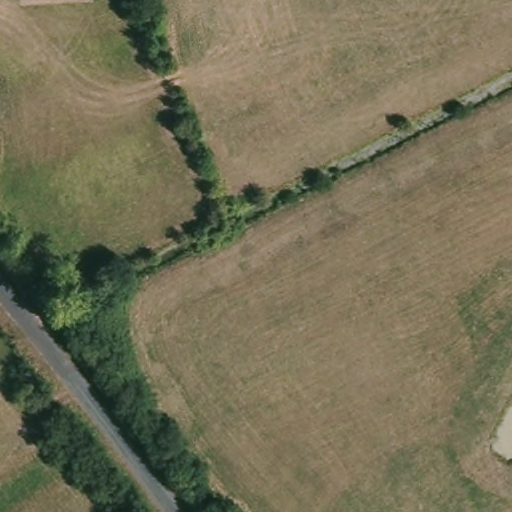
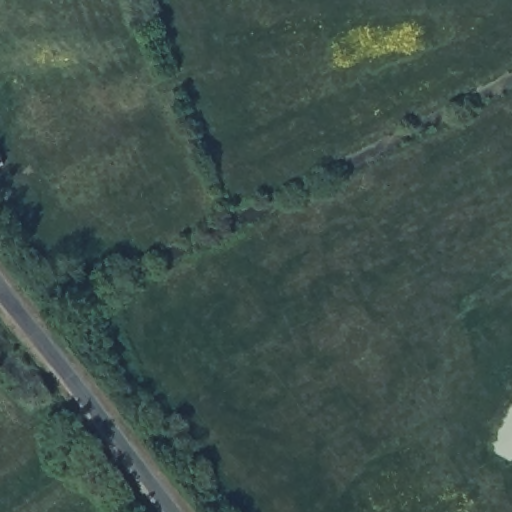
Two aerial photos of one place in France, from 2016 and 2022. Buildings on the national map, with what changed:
[]

